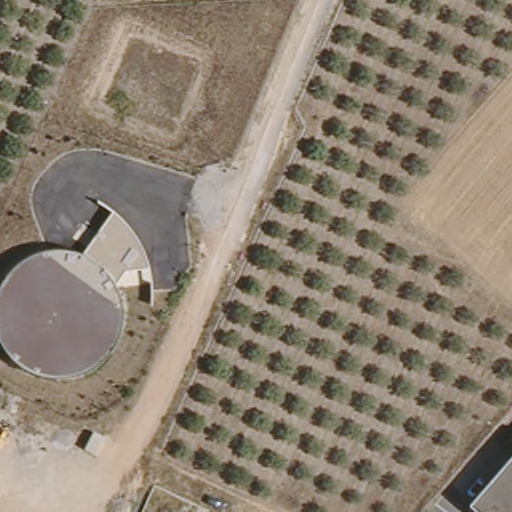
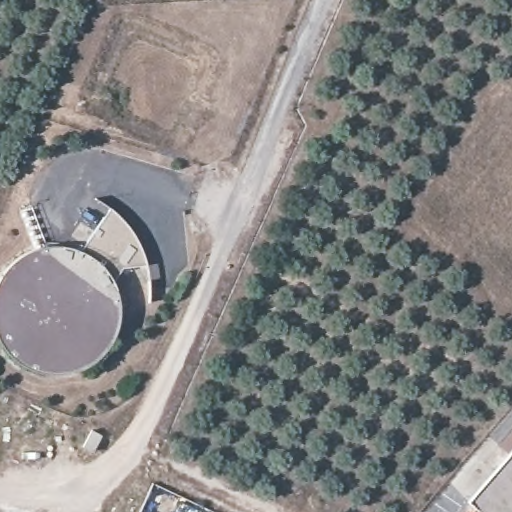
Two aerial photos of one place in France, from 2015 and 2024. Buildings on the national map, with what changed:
unchanged [(512,440),(512,512),(484,512),(463,494),(512,440)]

